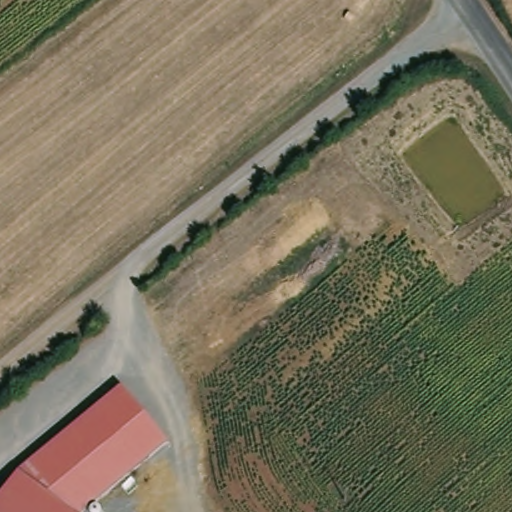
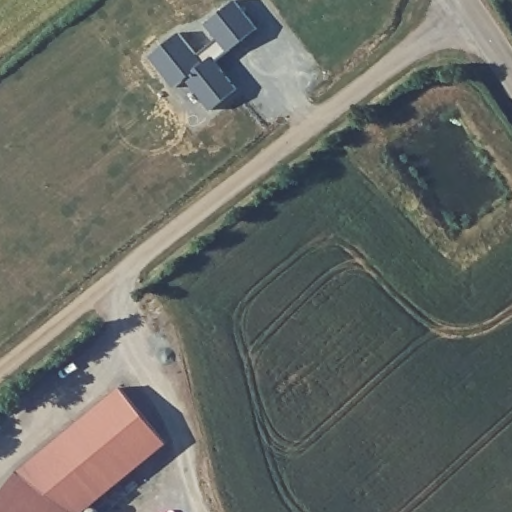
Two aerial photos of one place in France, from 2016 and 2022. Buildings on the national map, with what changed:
new [(217,60),(238,89),(210,110),(185,79),(173,87),(151,56),(151,52),(183,30),(198,53),(217,39),(208,25),(208,20),(236,0),(237,0),(258,26),(217,60)]
unchanged [(20,470),(122,385),(167,445),(80,512),(0,512),(0,496),(20,470)]

